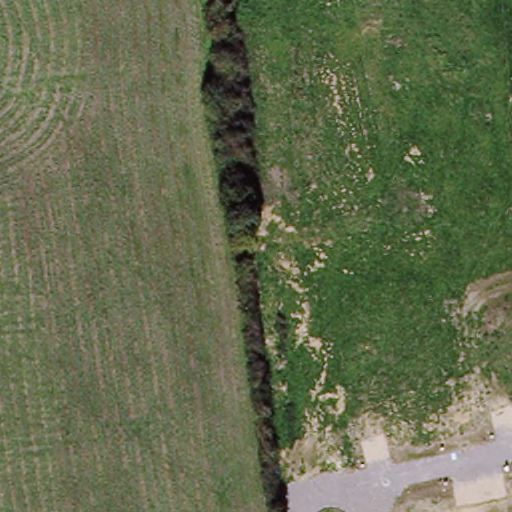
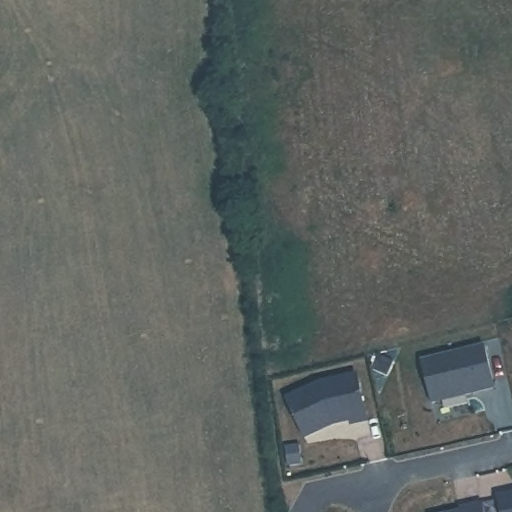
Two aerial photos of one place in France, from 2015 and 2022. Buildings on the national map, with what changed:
new [(493,387),(431,403),(419,360),(483,342),(493,387)]
new [(368,421),(347,425),(347,422),(335,425),(305,439),(285,398),(317,382),(356,372),(368,421)]
new [(498,512),(495,496),(512,493),(512,512),(498,512)]
new [(452,512),(458,510),(457,507),(482,501),(484,512),(452,512)]

